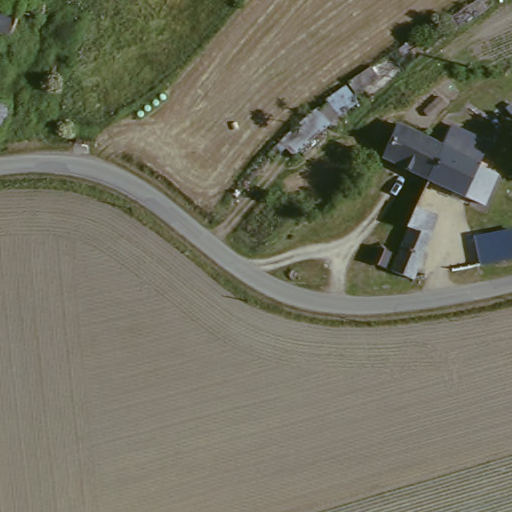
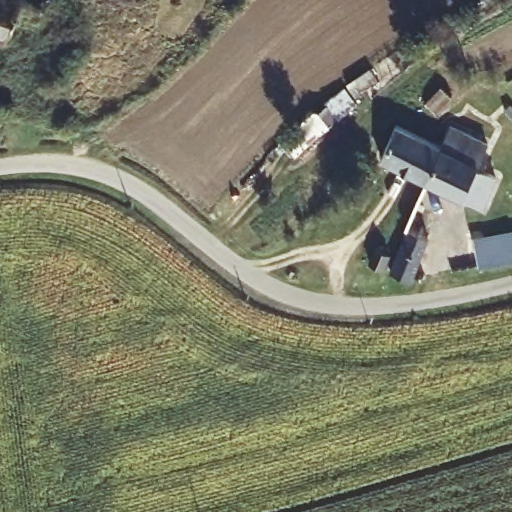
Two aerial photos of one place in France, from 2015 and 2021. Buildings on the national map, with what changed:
unchanged [(4,39),(0,38),(0,1),(16,5),(4,39)]
unchanged [(45,13),(33,48),(4,39),(16,5),(45,13)]
unchanged [(1,112),(0,116),(0,111),(1,112)]
unchanged [(434,139),(444,145),(426,175),(384,148),(403,119),(434,139)]
unchanged [(454,129),(483,148),(472,161),(485,171),(466,201),(426,175),(444,145),(454,129)]
unchanged [(407,282),(386,270),(423,209),(443,222),(407,282)]
unchanged [(473,238),(512,228),(512,260),(478,267),(473,238)]
unchanged [(376,270),(364,264),(376,247),(388,253),(376,270)]

